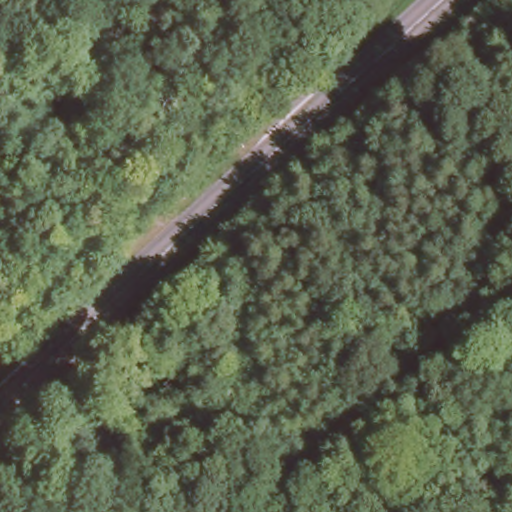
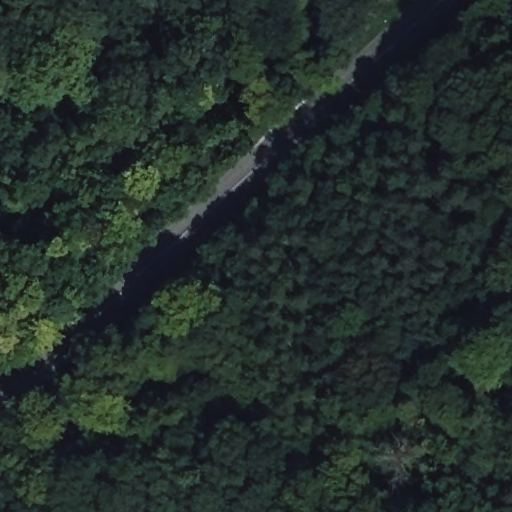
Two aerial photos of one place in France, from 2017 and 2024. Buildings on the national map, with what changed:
unchanged [(198,380),(175,404),(163,390),(188,368),(198,380)]

